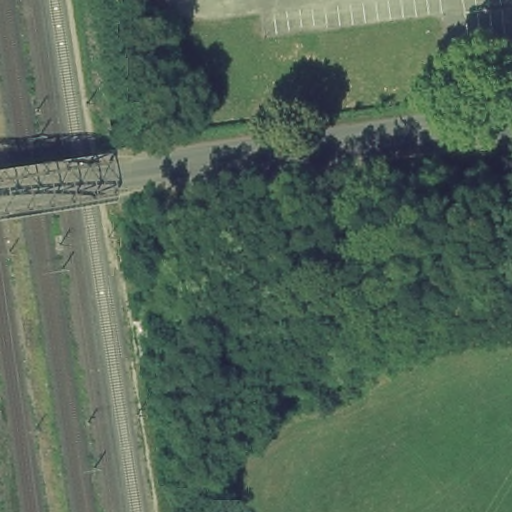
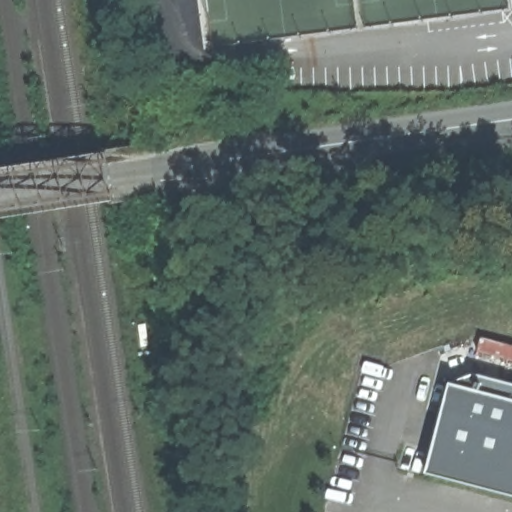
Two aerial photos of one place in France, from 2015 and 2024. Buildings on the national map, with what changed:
new [(152,292),(156,314),(143,316),(138,295),(152,292)]
new [(449,381),(473,372),(512,382),(512,496),(427,474),(449,381)]

